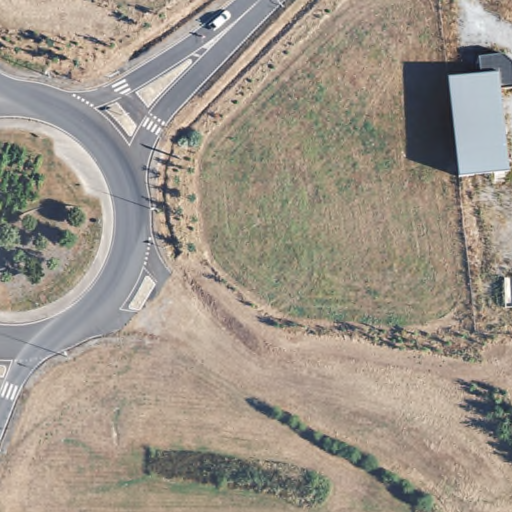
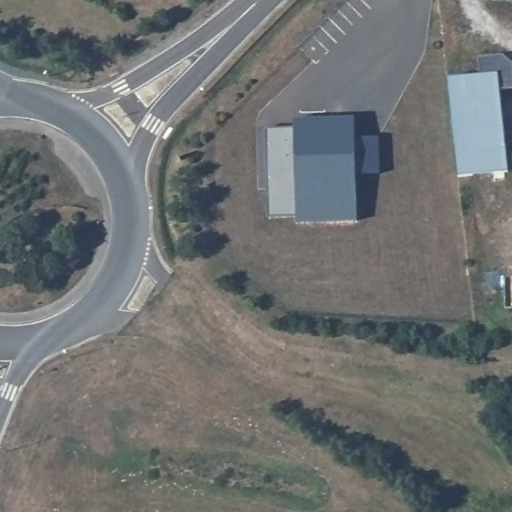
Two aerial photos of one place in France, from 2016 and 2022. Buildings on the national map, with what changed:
unchanged [(510,170),(457,178),(447,79),(481,76),(477,59),(501,56),(512,64),(512,88),(499,90),(510,170)]
new [(296,224),(296,217),(268,218),(265,126),(294,126),(293,118),(355,117),(356,137),(379,136),(380,174),(357,175),(358,222),(296,224)]

